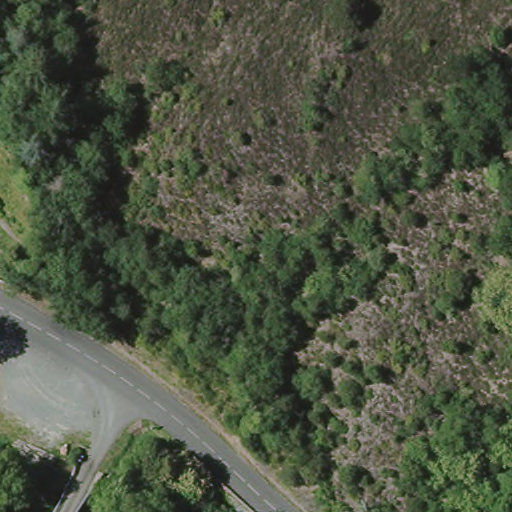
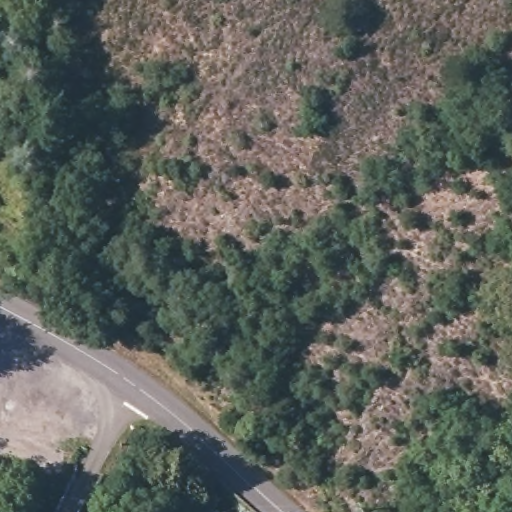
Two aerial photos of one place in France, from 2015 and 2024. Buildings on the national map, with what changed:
[]

